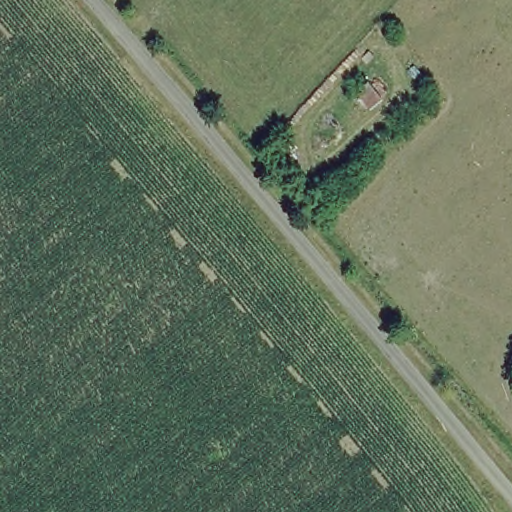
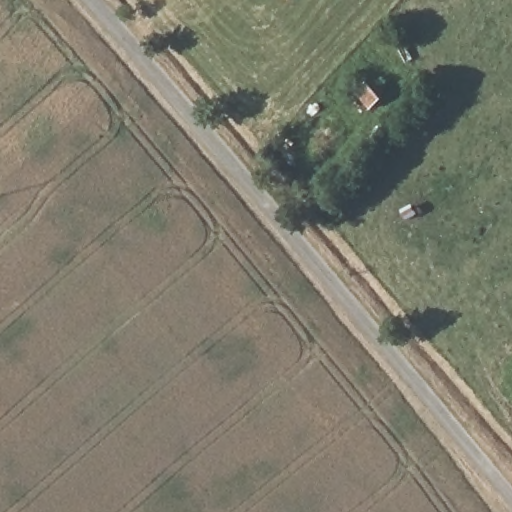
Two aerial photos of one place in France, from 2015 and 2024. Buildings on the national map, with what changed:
unchanged [(358,96),(371,86),(374,88),(379,84),(389,95),(384,100),(387,104),(375,114),(358,96)]

